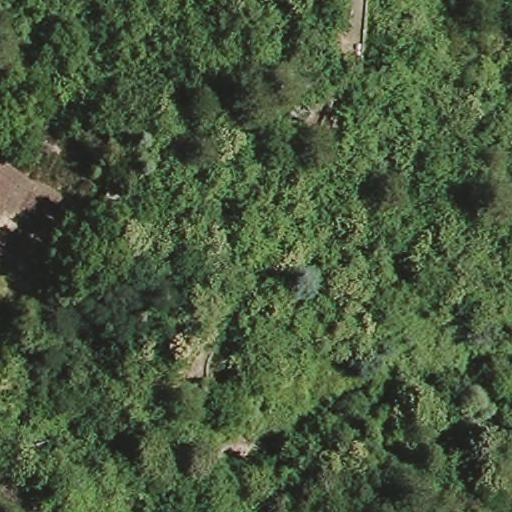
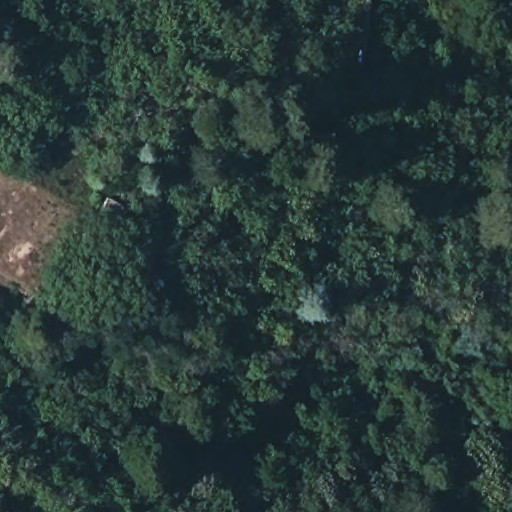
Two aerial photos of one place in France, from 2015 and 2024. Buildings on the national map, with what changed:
unchanged [(303,119),(281,111),(287,97),(308,105),(303,119)]
unchanged [(507,467),(512,467),(512,486),(508,486),(507,467)]

